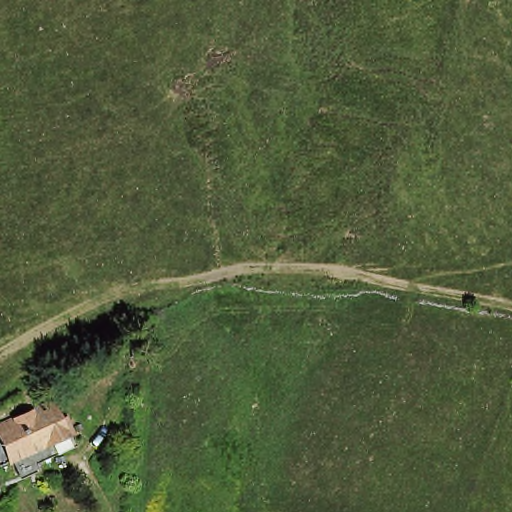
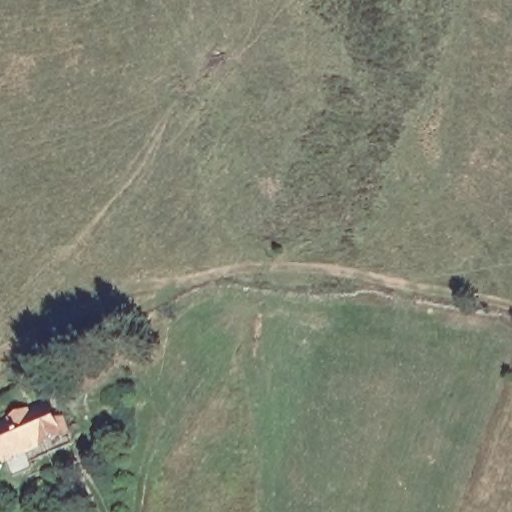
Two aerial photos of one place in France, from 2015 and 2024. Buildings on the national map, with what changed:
unchanged [(49,457),(44,447),(6,464),(5,464),(0,454),(0,429),(47,408),(55,424),(62,421),(69,436),(66,437),(70,447),(49,457)]

